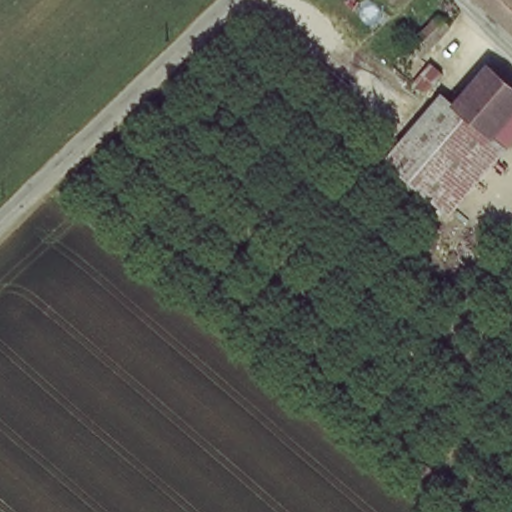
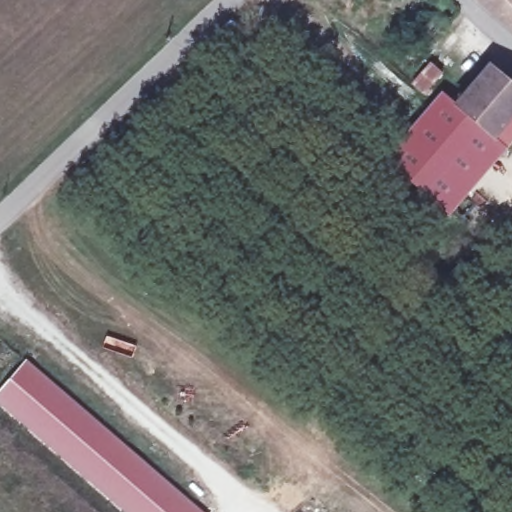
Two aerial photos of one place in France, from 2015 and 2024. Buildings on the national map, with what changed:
unchanged [(477,0),(512,0),(512,31),(477,0)]
unchanged [(497,75),(512,87),(512,131),(445,207),(397,165),(454,101),(465,111),(497,75)]
new [(0,406),(0,390),(26,358),(204,512),(123,512),(0,406)]

